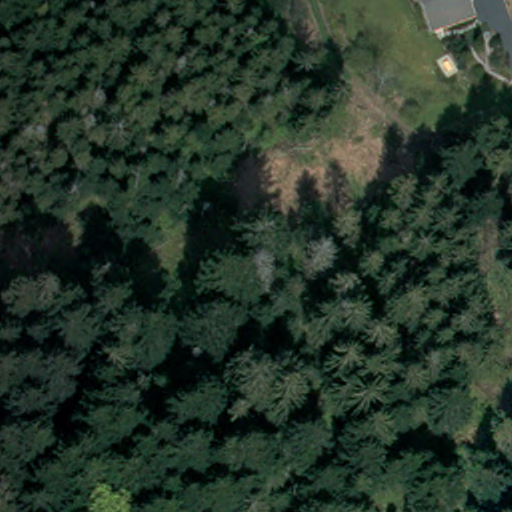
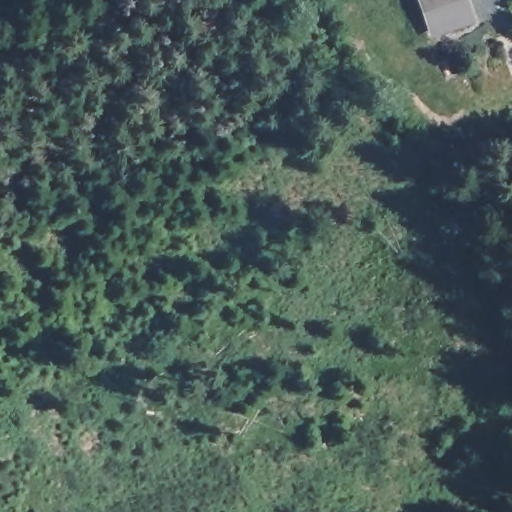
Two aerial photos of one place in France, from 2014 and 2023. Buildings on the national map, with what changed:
unchanged [(430,34),(418,0),(462,0),(469,19),(430,34)]

